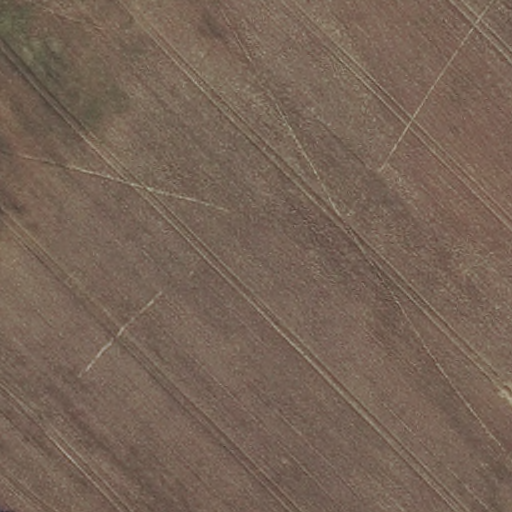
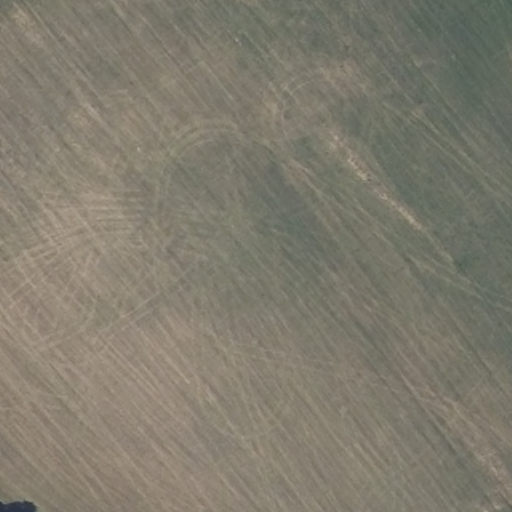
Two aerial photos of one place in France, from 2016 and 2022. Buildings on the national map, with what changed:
[]

